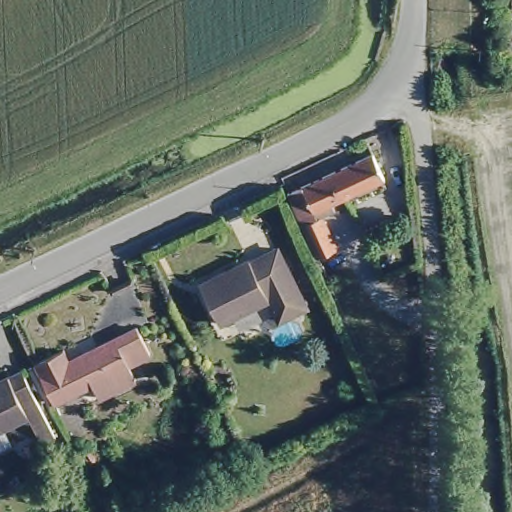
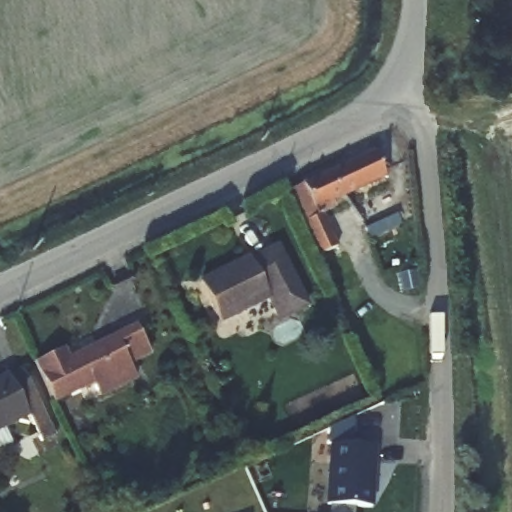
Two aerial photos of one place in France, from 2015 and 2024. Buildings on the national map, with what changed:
unchanged [(288,193),(367,155),(379,179),(330,202),(333,208),(320,214),(334,245),(317,253),(288,193)]
unchanged [(372,233),(369,227),(400,211),(403,218),(372,233)]
unchanged [(265,294),(212,318),(195,278),(246,254),(249,258),(276,245),(305,303),(274,318),(265,294)]
unchanged [(60,345),(69,358),(137,322),(149,348),(126,361),(133,376),(97,394),(90,382),(52,399),(32,359),(60,345)]
unchanged [(57,436),(40,443),(28,416),(3,427),(13,444),(0,451),(0,378),(22,368),(57,436)]
new [(327,505),(330,445),(373,447),(370,507),(327,505)]

